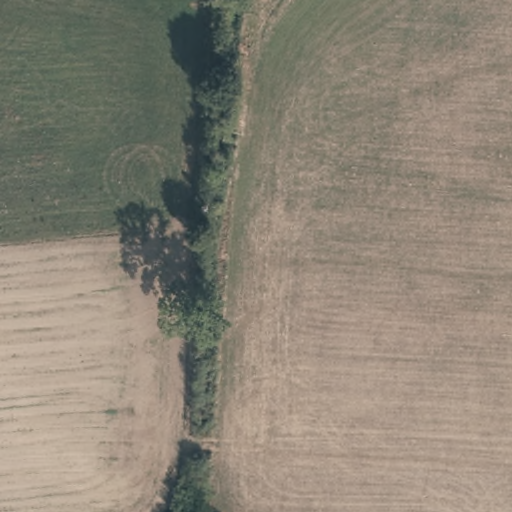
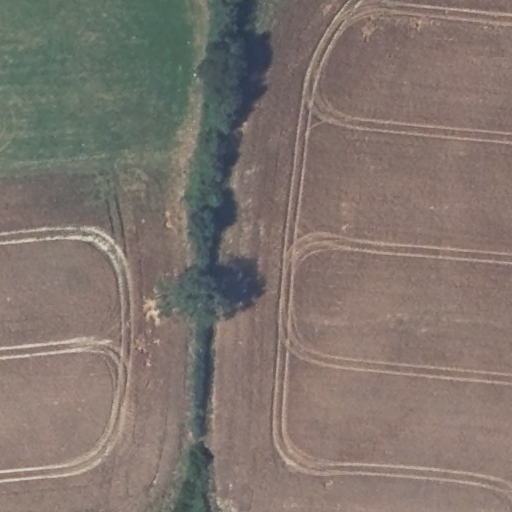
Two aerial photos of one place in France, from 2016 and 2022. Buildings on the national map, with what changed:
[]

